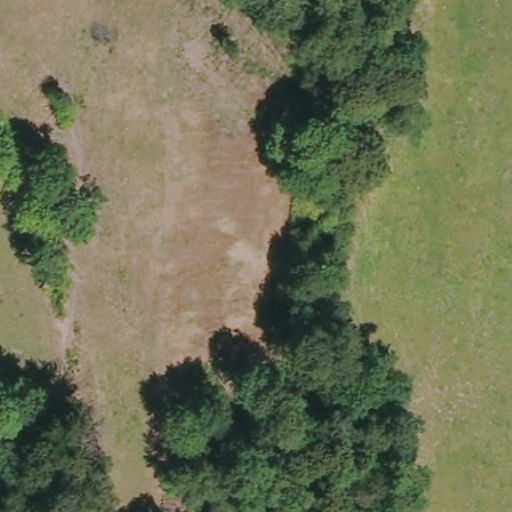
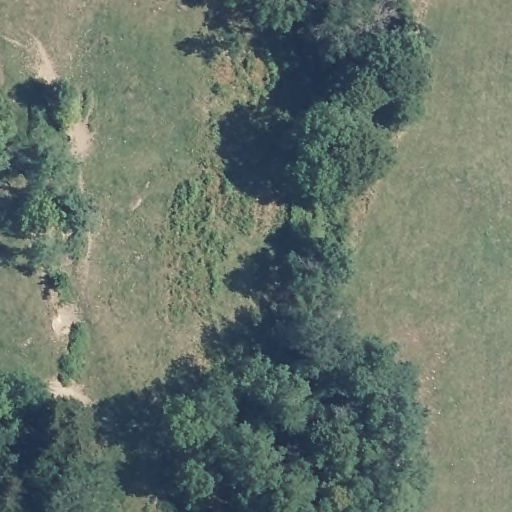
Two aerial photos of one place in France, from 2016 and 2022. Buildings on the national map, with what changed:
[]

